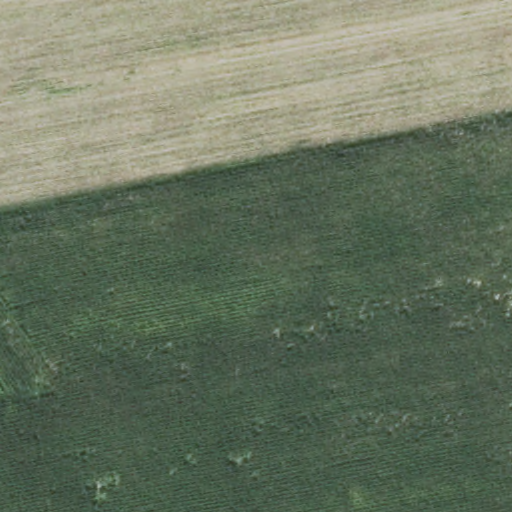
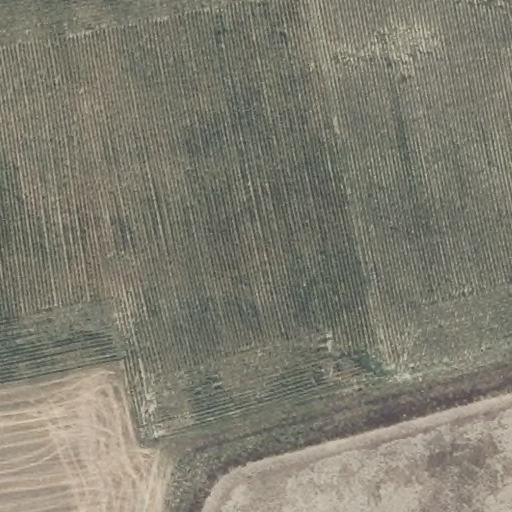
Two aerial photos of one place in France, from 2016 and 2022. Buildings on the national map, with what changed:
[]

